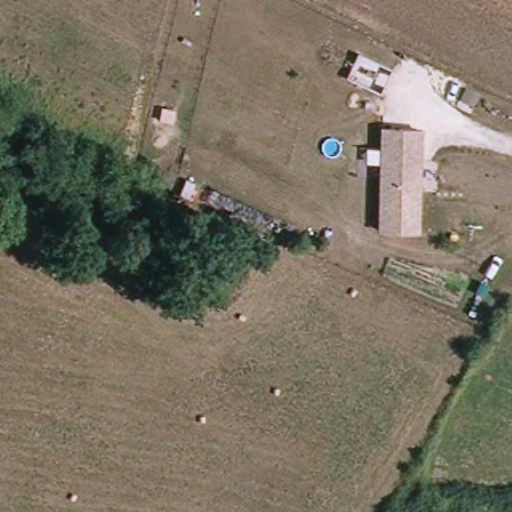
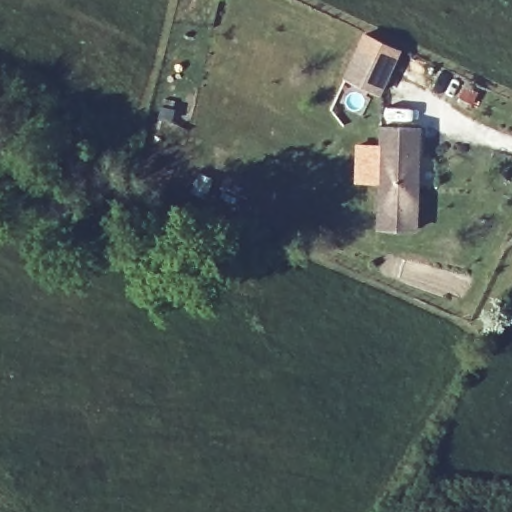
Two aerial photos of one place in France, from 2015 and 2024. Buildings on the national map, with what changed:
new [(365,31),(402,49),(382,95),(345,77),(365,31)]
unchanged [(418,230),(378,229),(381,125),(422,126),(418,230)]

